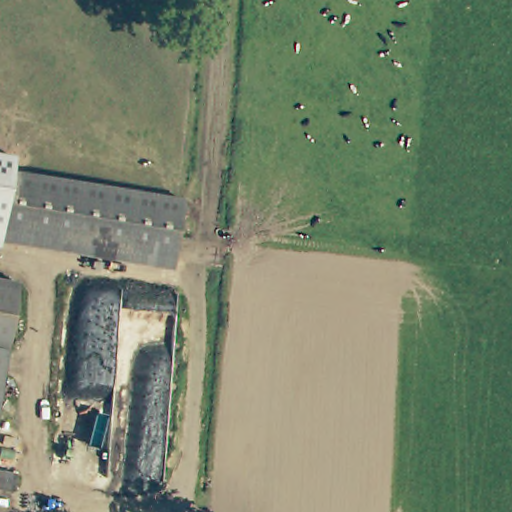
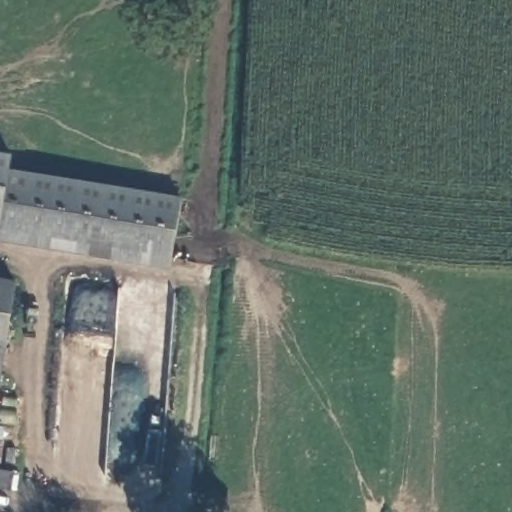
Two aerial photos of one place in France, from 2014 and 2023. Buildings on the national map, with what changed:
unchanged [(0,205),(0,155),(10,156),(6,173),(0,205)]
unchanged [(0,235),(0,205),(6,173),(181,206),(170,264),(0,235)]
unchanged [(19,281),(13,313),(7,346),(0,345),(0,278),(19,281)]
unchanged [(0,385),(0,345),(7,346),(0,385)]
unchanged [(23,470),(21,481),(20,487),(0,484),(0,467),(23,470)]

